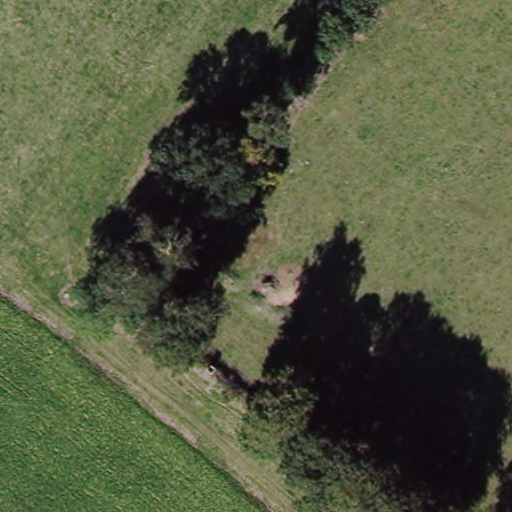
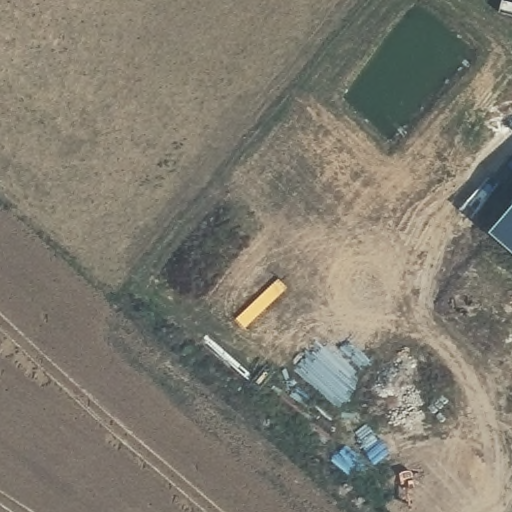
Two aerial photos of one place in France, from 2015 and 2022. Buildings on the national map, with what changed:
new [(512,205),(512,251),(489,231),(512,205)]

